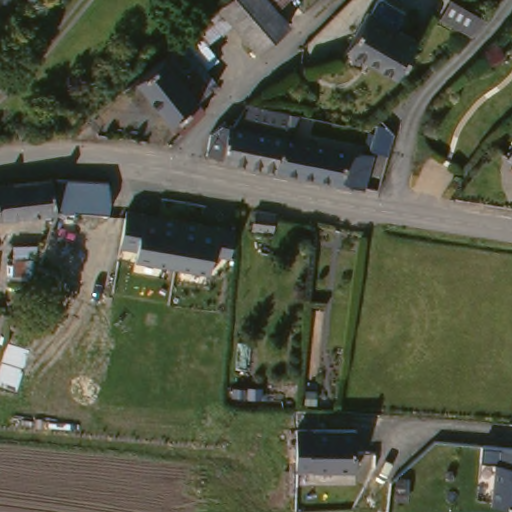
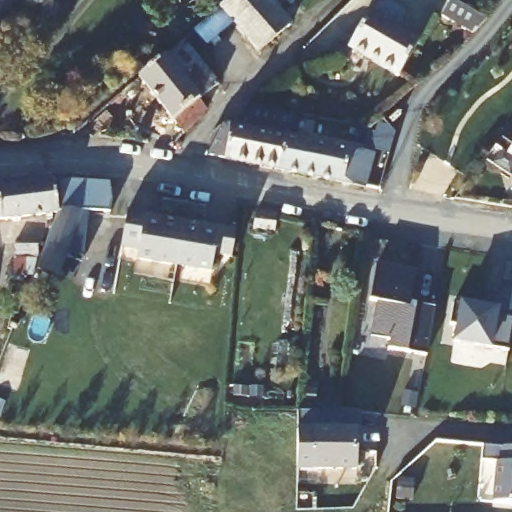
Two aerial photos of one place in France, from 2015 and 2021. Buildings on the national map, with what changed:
unchanged [(257,57),(232,29),(205,52),(217,66),(205,74),(183,47),(182,45),(182,44),(235,0),(286,0),(289,4),(277,14),(290,29),(257,57)]
unchanged [(486,20),(471,34),(441,16),(450,0),(453,0),(486,20)]
unchanged [(397,81),(358,58),(347,52),(368,17),(372,19),(380,5),(386,3),(405,14),(406,17),(406,20),(398,34),(417,45),(397,81)]
unchanged [(183,47),(205,74),(218,90),(199,105),(207,115),(180,136),(138,82),(183,47)]
unchanged [(256,109),(299,117),(295,141),(287,175),(217,161),(221,139),(233,129),(244,131),(256,109)]
unchanged [(295,141),(383,158),(375,191),(287,175),(295,141)]
unchanged [(69,175),(73,207),(71,209),(0,218),(0,183),(69,175)]
unchanged [(124,177),(128,208),(90,207),(80,241),(61,236),(71,209),(74,208),(73,207),(76,206),(72,175),(124,177)]
unchanged [(277,214),(274,232),(252,228),(256,210),(277,214)]
unchanged [(163,217),(177,218),(189,220),(207,222),(221,225),(239,227),(236,254),(219,252),(216,271),(181,265),(142,258),(143,249),(128,247),(126,246),(131,212),(163,217)]
unchanged [(60,239),(51,263),(45,277),(29,277),(28,239),(60,239)]
new [(406,352),(387,350),(390,340),(370,337),(377,302),(369,300),(376,266),(415,273),(408,304),(417,306),(435,308),(426,356),(406,352)]
new [(459,302),(496,308),(499,286),(512,289),(512,325),(507,352),(491,349),(453,342),(455,327),(450,327),(454,302),(459,304),(459,302)]
unchanged [(356,469),(296,469),(297,425),(355,426),(356,469)]
unchanged [(512,504),(495,502),(500,457),(512,458),(512,504)]

